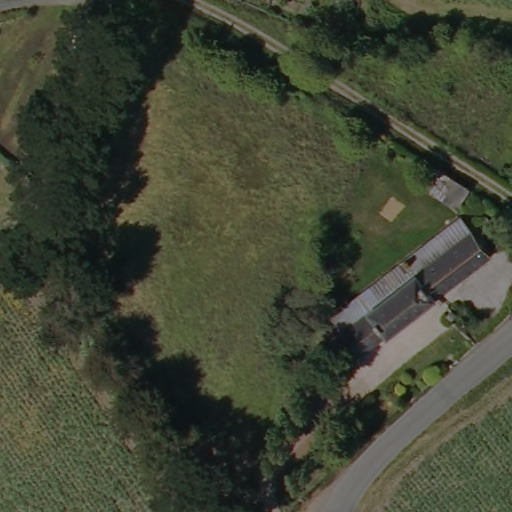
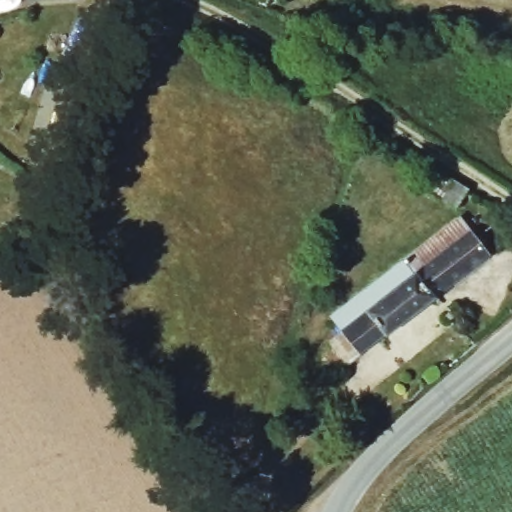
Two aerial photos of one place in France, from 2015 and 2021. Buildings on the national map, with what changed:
unchanged [(458,185),(448,203),(431,195),(441,174),(458,185)]
unchanged [(329,333),(346,321),(339,308),(465,217),(471,227),(490,216),(496,225),(481,236),(494,252),(346,360),(329,333)]

